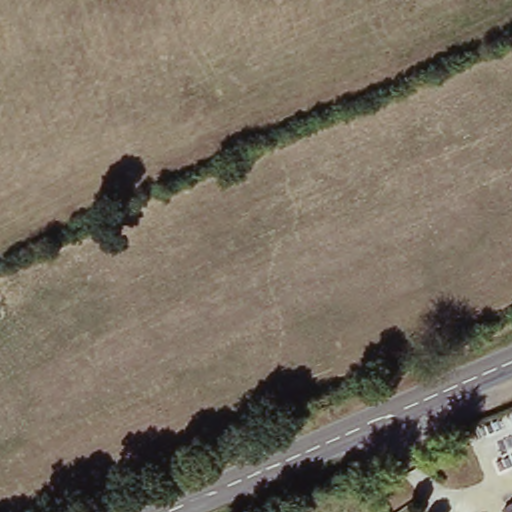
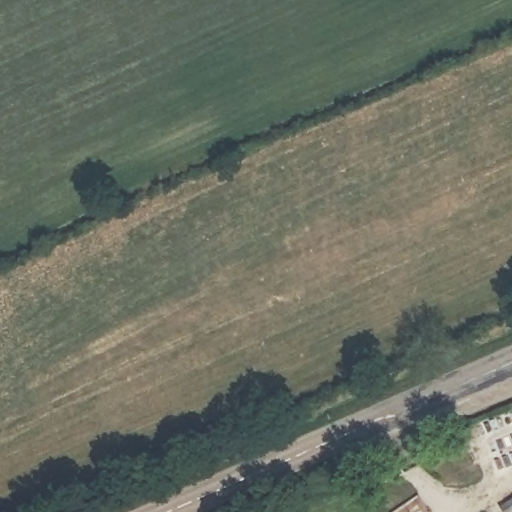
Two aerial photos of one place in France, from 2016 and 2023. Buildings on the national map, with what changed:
unchanged [(512,502),(512,512),(507,512),(504,507),(512,502)]

